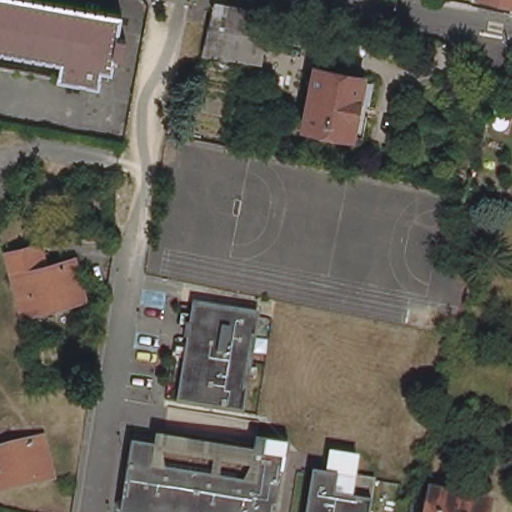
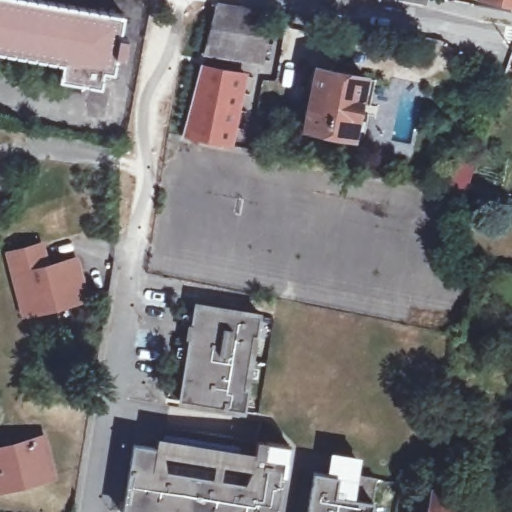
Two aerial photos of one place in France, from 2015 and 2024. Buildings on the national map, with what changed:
unchanged [(122,36),(129,37),(125,56),(119,55),(116,71),(107,70),(104,85),(62,78),(64,62),(0,50),(0,0),(56,0),(126,13),(122,36)]
unchanged [(501,0),(512,0),(512,3),(501,0)]
unchanged [(220,12),(275,21),(265,72),(207,60),(220,12)]
unchanged [(62,78),(0,67),(0,50),(64,62),(62,78)]
new [(249,75),(232,145),(184,135),(202,66),(249,75)]
unchanged [(369,79),(357,137),(308,127),(320,68),(369,79)]
unchanged [(50,268),(80,260),(90,297),(29,314),(12,253),(44,246),(50,268)]
unchanged [(262,315),(258,338),(255,337),(247,388),(250,389),(246,413),(180,402),(197,304),(262,315)]
unchanged [(57,476),(0,490),(0,449),(47,437),(57,476)]
unchanged [(240,458),(238,472),(254,474),(257,451),(262,452),(267,453),(267,454),(290,458),(287,471),(285,470),(279,512),(125,512),(133,465),(135,453),(158,457),(157,464),(163,465),(165,446),(231,456),(240,458)]
unchanged [(355,480),(377,484),(373,512),(310,512),(315,478),(335,481),(338,461),(358,464),(355,480)]
unchanged [(427,512),(432,489),(488,500),(486,512),(427,512)]

